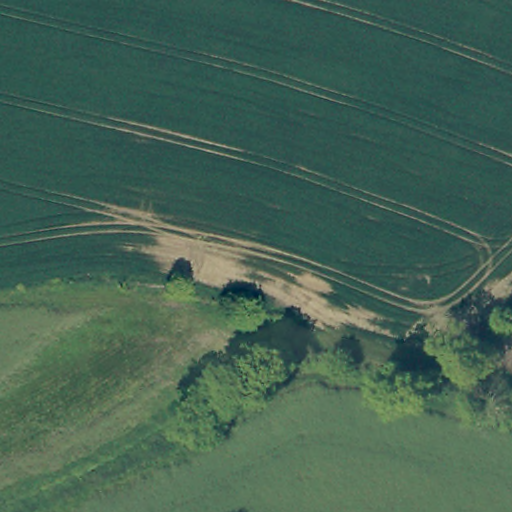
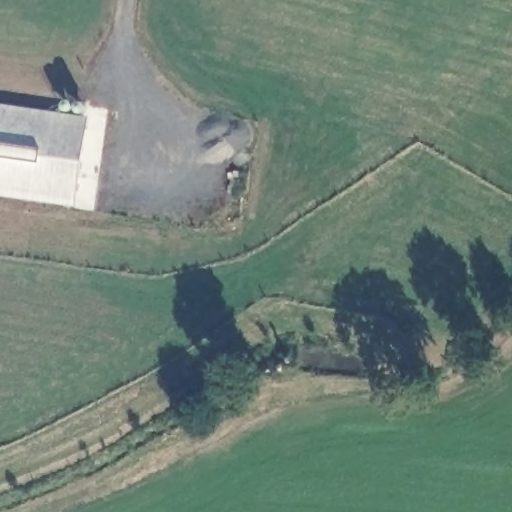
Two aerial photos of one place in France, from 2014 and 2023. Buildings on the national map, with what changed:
new [(0,194),(0,103),(89,116),(75,205),(0,194)]

